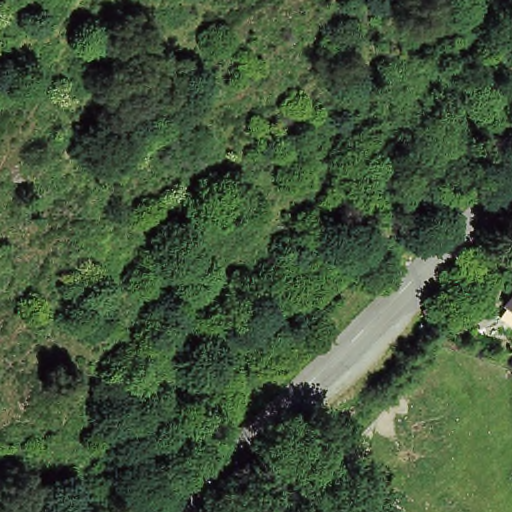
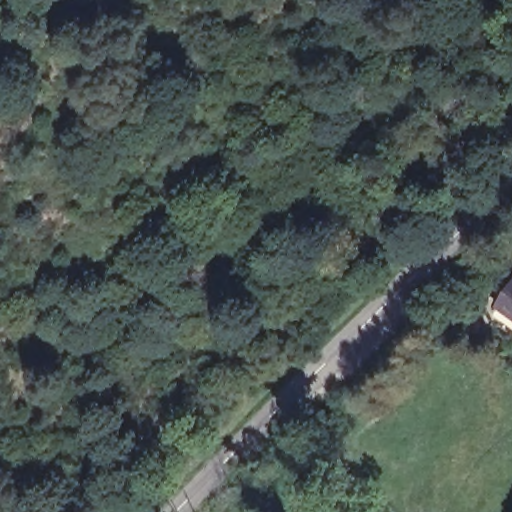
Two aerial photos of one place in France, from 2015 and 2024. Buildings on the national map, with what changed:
unchanged [(500,308),(512,290),(512,317),(500,308)]

